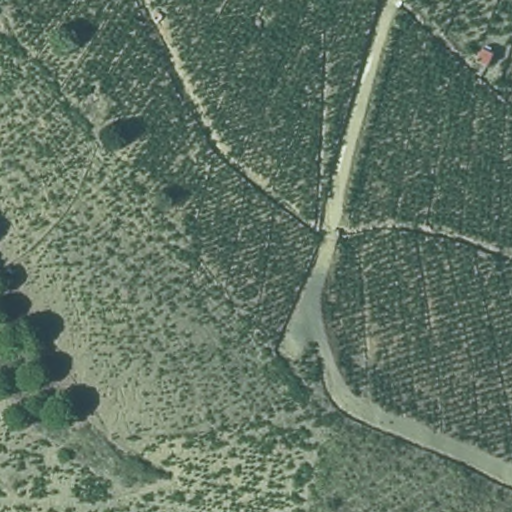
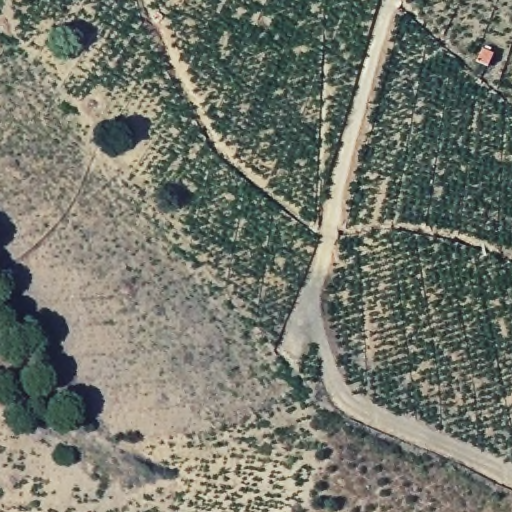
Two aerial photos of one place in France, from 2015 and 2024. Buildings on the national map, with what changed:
unchanged [(498,57),(491,71),(479,64),(485,50),(498,57)]

